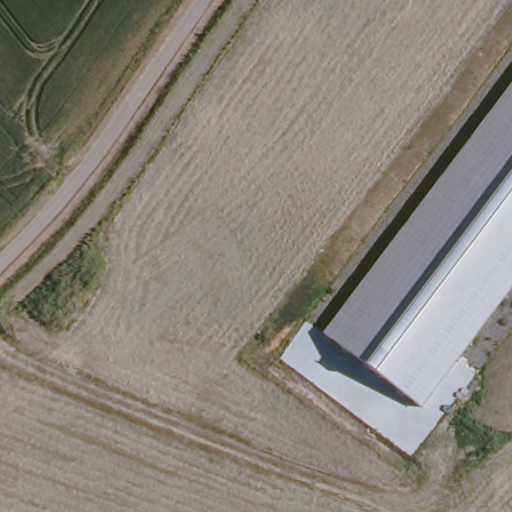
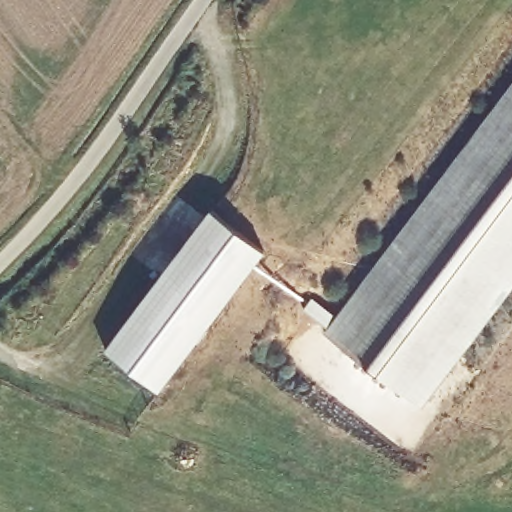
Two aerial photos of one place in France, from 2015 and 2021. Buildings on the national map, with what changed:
unchanged [(326,333),(512,85),(512,291),(424,409),(326,333)]
new [(211,210),(264,250),(157,390),(105,351),(211,210)]

